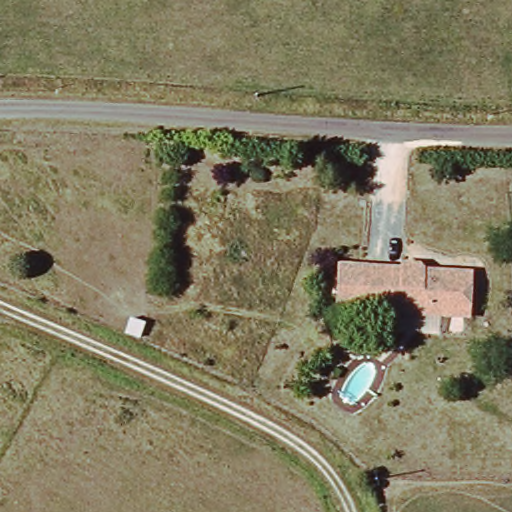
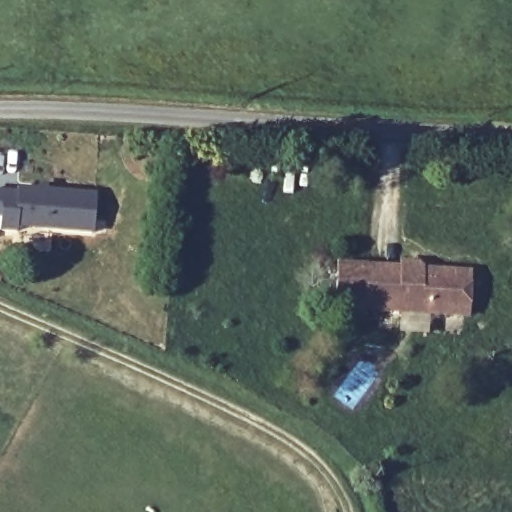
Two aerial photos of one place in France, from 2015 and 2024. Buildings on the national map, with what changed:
new [(19,187),(96,194),(93,232),(16,226),(16,231),(0,230),(0,215),(0,190),(19,192),(19,187)]
unchanged [(411,273),(410,267),(429,267),(434,273),(484,273),(483,317),(372,316),(372,273),(411,273)]

